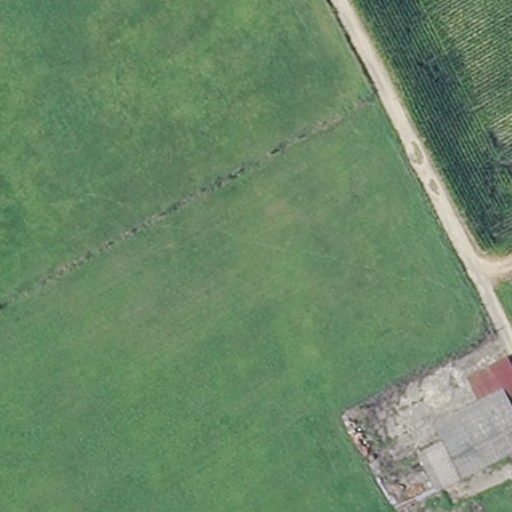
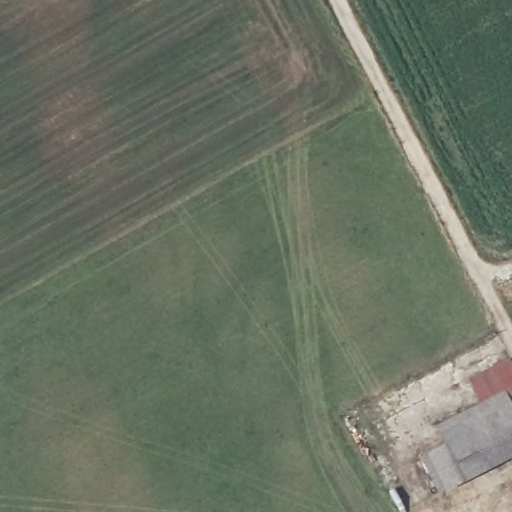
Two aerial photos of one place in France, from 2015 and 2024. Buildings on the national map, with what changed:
unchanged [(436,489),(418,454),(443,441),(434,423),(478,401),(467,378),(505,359),(512,372),(512,452),(436,489)]

